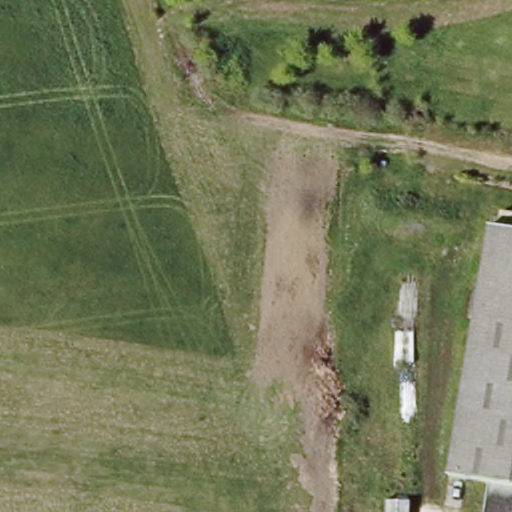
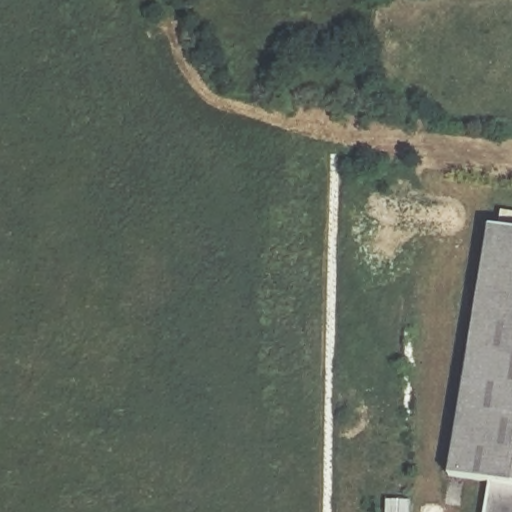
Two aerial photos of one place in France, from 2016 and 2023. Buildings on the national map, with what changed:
unchanged [(453,477),(489,222),(512,225),(512,512),(486,512),(491,482),(453,477)]

